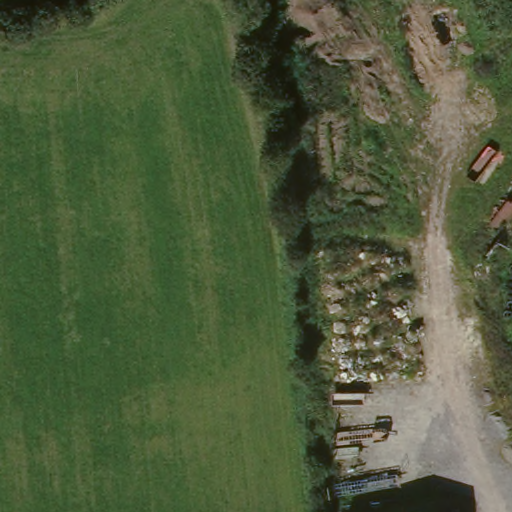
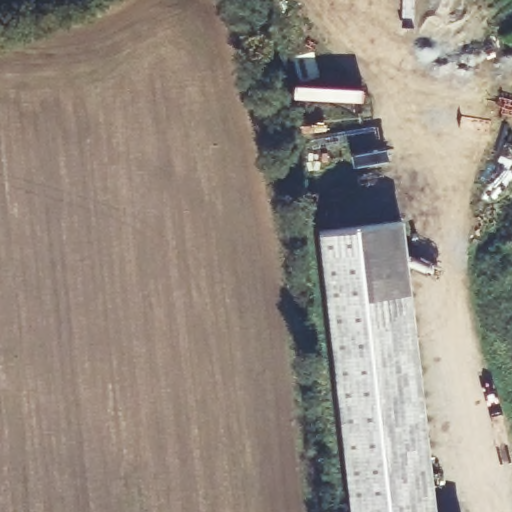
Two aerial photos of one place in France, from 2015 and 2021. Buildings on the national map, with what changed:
new [(403,222),(436,512),(351,512),(319,232),(403,222)]

